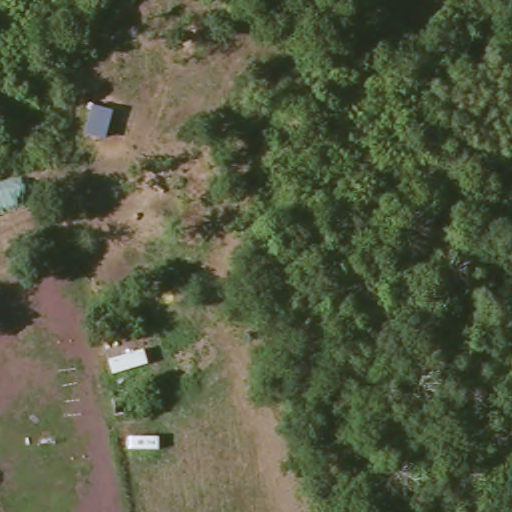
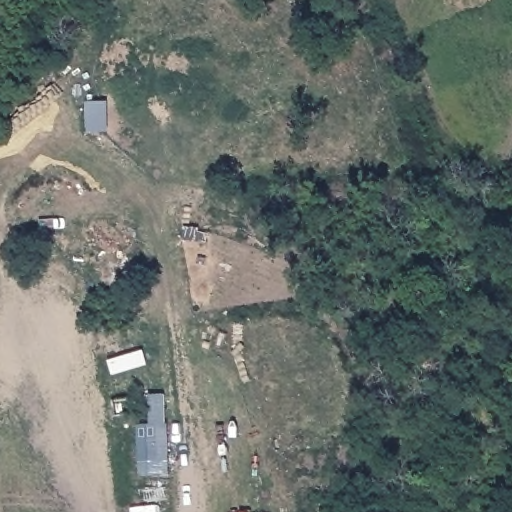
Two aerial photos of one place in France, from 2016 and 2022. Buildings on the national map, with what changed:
unchanged [(114,110),(107,138),(85,132),(92,105),(114,110)]

